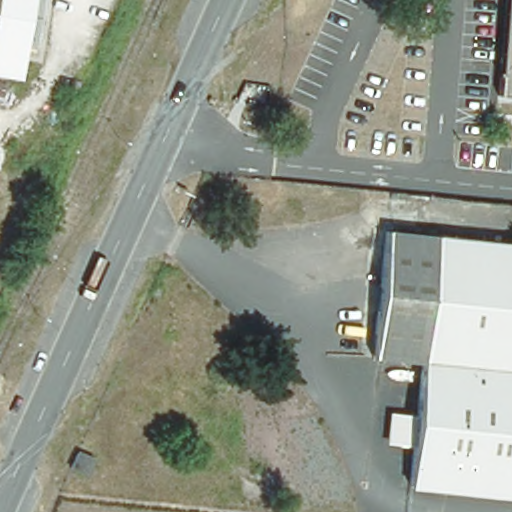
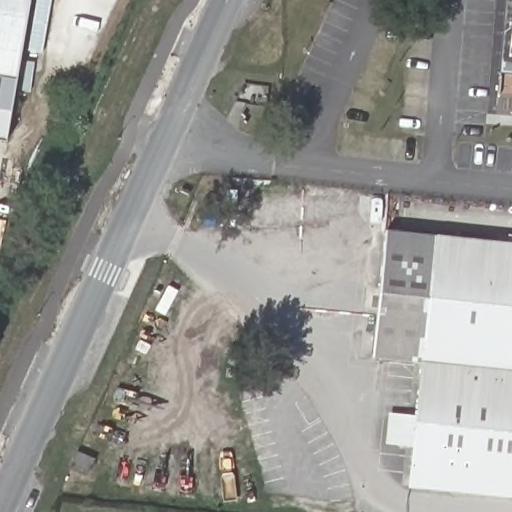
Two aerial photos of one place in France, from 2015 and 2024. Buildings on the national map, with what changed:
unchanged [(0,77),(0,0),(30,0),(17,80),(0,77)]
unchanged [(497,101),(505,0),(512,0),(512,102),(497,101)]
new [(6,143),(0,142),(0,77),(17,80),(6,143)]
unchanged [(419,360),(371,357),(385,228),(431,230),(419,360)]
unchanged [(407,486),(409,444),(382,441),(385,406),(415,407),(419,360),(431,230),(512,237),(512,499),(407,486)]

